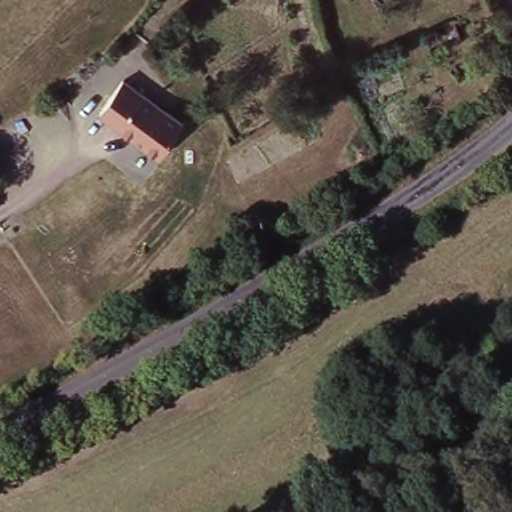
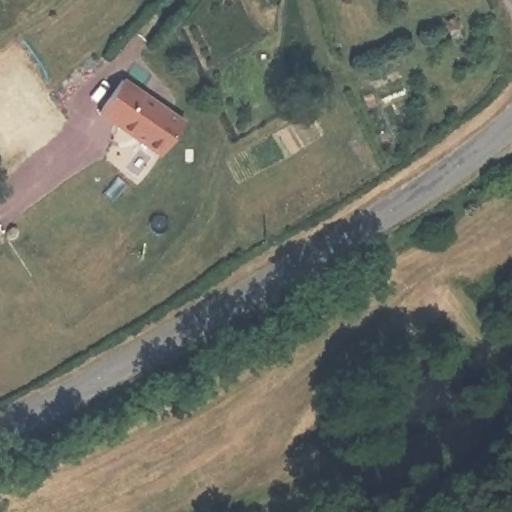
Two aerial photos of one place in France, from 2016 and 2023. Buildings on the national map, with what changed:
unchanged [(181,122),(158,156),(108,120),(127,81),(181,122)]
unchanged [(425,390),(435,407),(427,412),(417,395),(425,390)]

